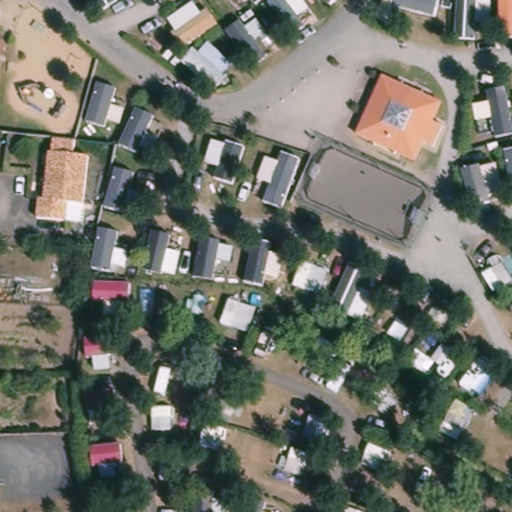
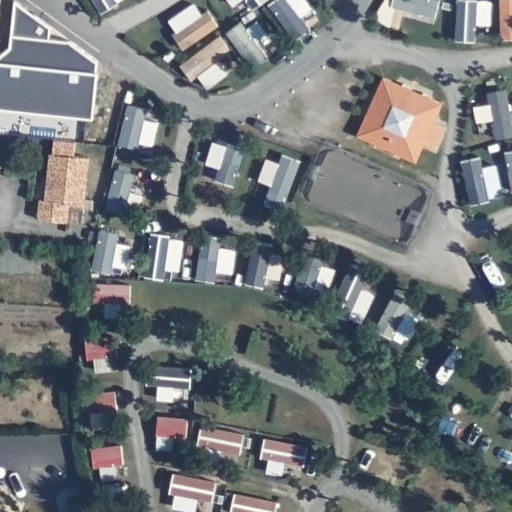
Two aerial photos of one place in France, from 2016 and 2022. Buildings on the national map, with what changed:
new [(10,46),(12,34),(15,1),(50,25),(49,39),(70,41),(96,61),(93,117),(0,107),(0,53),(10,46)]
unchanged [(440,106),(412,166),(356,141),(381,80),(440,106)]
unchanged [(87,207),(72,205),(70,224),(41,220),(43,201),(48,201),(53,155),(56,155),(58,140),(79,142),(77,157),(92,159),(87,207)]

